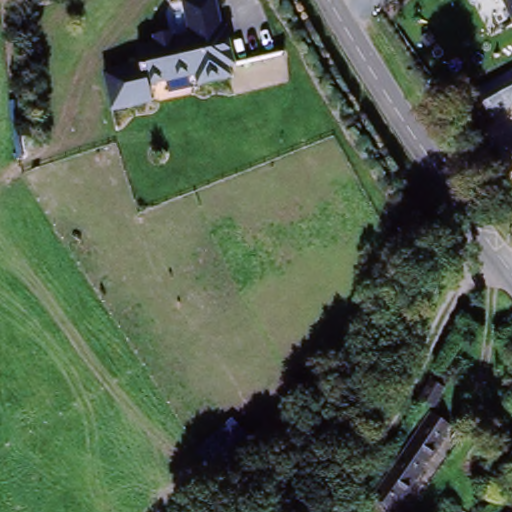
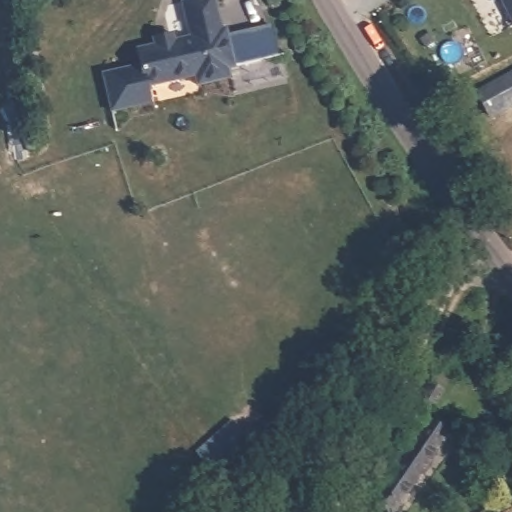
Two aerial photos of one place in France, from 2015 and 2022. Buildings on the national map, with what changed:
unchanged [(226,20),(237,56),(230,59),(233,68),(200,78),(196,68),(150,81),(153,88),(155,95),(130,102),(117,107),(105,71),(142,60),(137,45),(190,29),(180,0),(215,0),(222,21),(226,20)]
unchanged [(501,0),(512,0),(512,20),(501,0)]
unchanged [(485,118),(471,91),(512,70),(512,104),(485,118)]
unchanged [(440,385),(425,413),(408,403),(424,375),(440,385)]
unchanged [(399,512),(374,512),(368,508),(420,423),(423,420),(447,434),(442,443),(399,512)]

